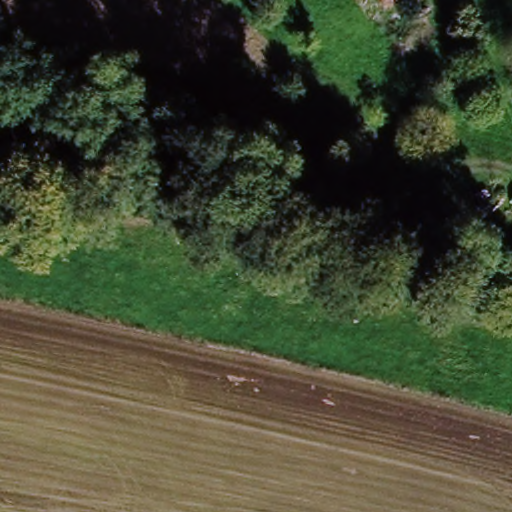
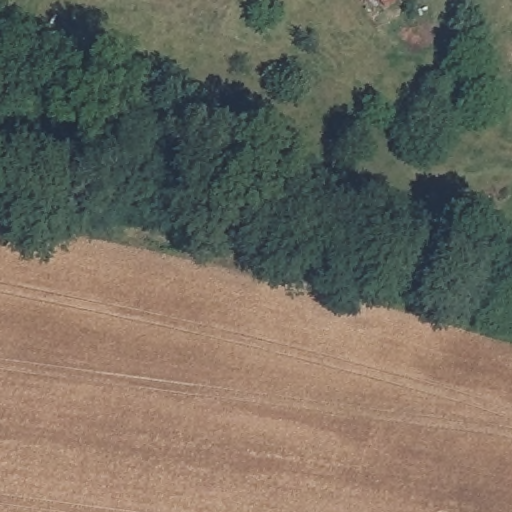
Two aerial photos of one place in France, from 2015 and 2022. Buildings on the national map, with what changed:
unchanged [(387,9),(381,0),(401,0),(387,9)]

